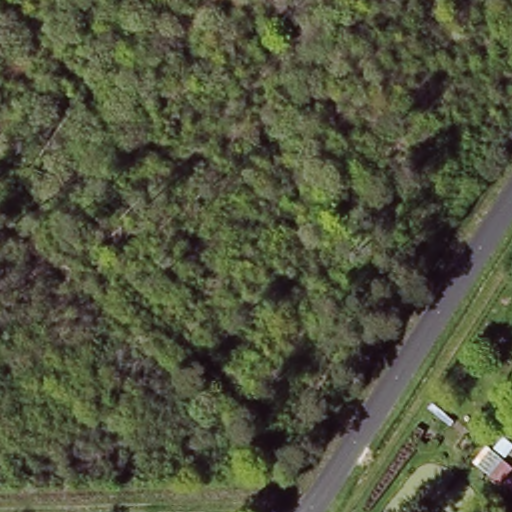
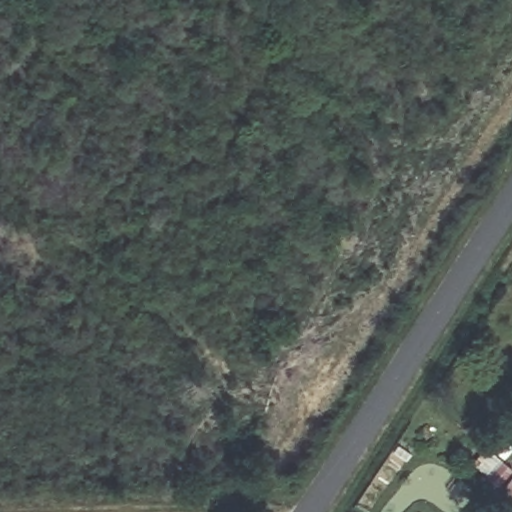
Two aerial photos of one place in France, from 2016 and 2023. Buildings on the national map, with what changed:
unchanged [(512,486),(512,492),(509,490),(512,486)]

